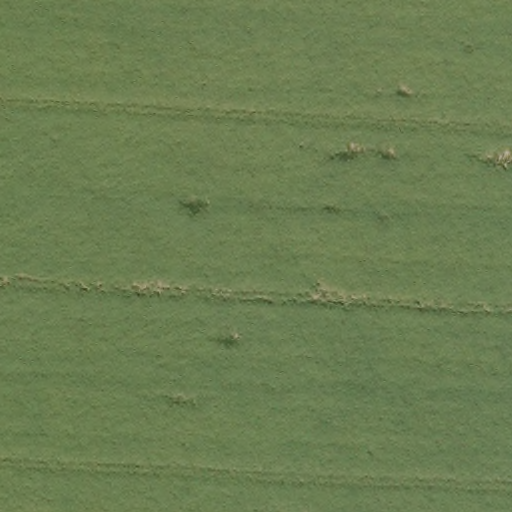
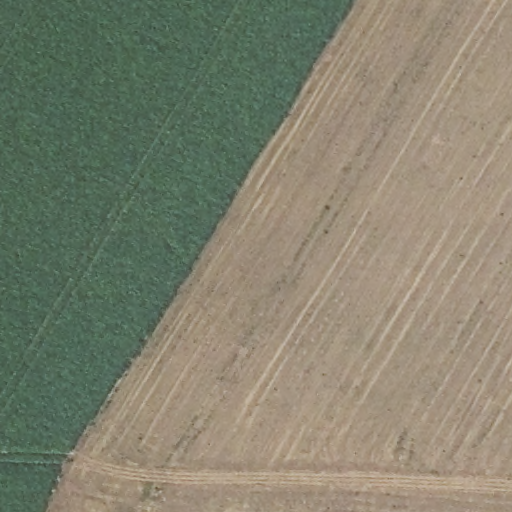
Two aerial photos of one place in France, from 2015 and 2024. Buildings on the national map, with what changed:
[]

